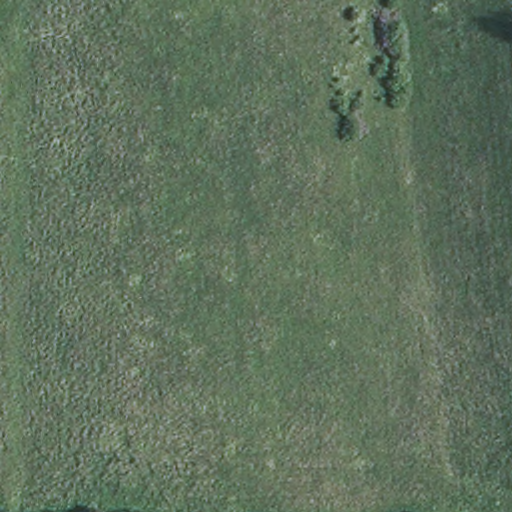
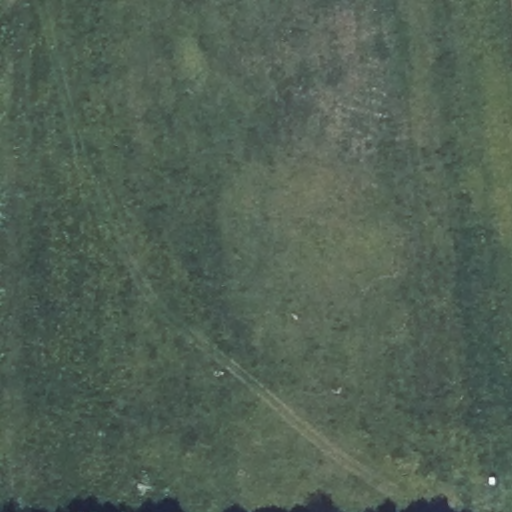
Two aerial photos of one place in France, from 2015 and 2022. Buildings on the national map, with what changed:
[]

